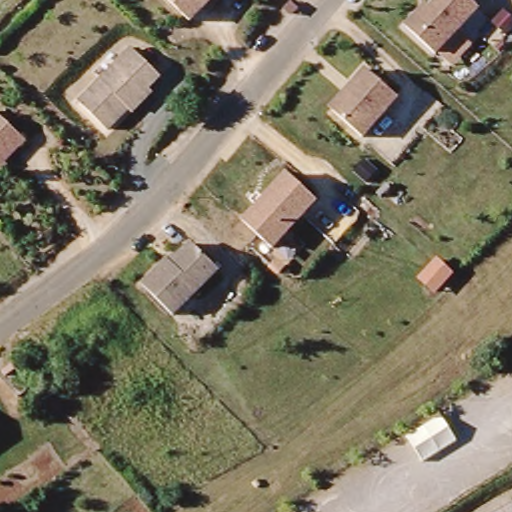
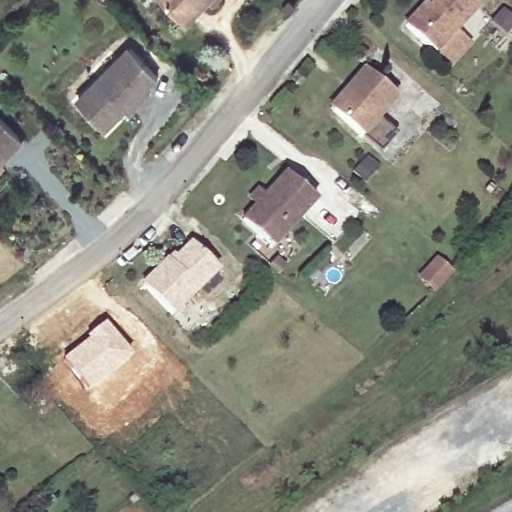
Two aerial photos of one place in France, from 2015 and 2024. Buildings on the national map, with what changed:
unchanged [(172,0),(209,0),(192,19),(172,0)]
unchanged [(214,0),(217,0),(216,1),(214,0)]
unchanged [(407,25),(416,14),(427,11),(437,0),(473,0),(479,6),(436,52),(407,25)]
unchanged [(129,108),(109,128),(80,100),(134,46),(162,75),(150,86),(154,91),(141,104),(133,111),(129,108)]
unchanged [(399,95),(364,135),(335,110),(331,107),(354,81),(366,68),(399,95)]
unchanged [(0,114),(26,139),(0,166),(0,114)]
unchanged [(249,219),(289,168),(320,193),(280,244),(272,254),(255,241),(263,230),(249,219)]
unchanged [(170,262),(174,266),(195,244),(222,270),(177,317),(146,287),(170,262)]
new [(104,322),(131,357),(87,393),(61,360),(104,322)]

